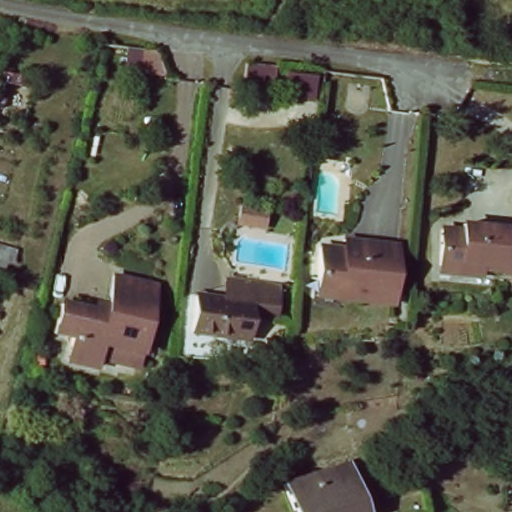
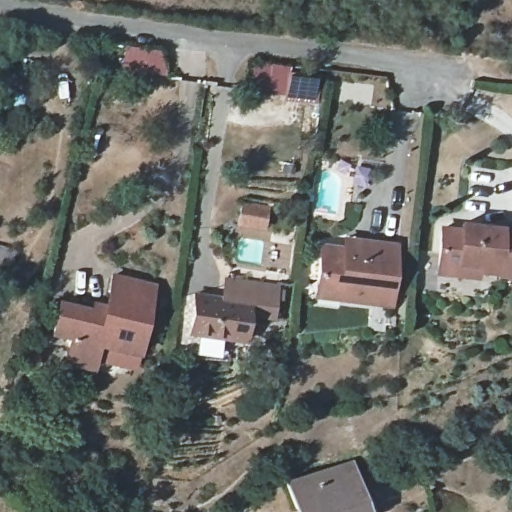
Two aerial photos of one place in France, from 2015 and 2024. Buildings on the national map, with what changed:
unchanged [(274,58),(271,83),(243,79),(248,54),(274,58)]
unchanged [(494,270),(496,262),(479,260),(477,277),(437,273),(438,263),(442,230),(459,231),(462,220),(512,226),(512,272),(494,270)]
unchanged [(11,283),(0,281),(0,241),(18,244),(11,283)]
unchanged [(314,287),(318,247),(344,250),(345,241),(359,242),(396,245),(389,308),(335,302),(313,300),(314,287)]
unchanged [(116,360),(98,357),(96,365),(68,358),(73,333),(55,329),(62,298),(93,305),(105,295),(110,271),(143,277),(156,280),(152,295),(141,350),(138,365),(116,360)]
unchanged [(275,318),(248,315),(244,343),(194,336),(199,300),(224,303),(226,285),(236,286),(279,291),(275,318)]
unchanged [(371,512),(301,512),(291,483),(354,464),(371,512)]

